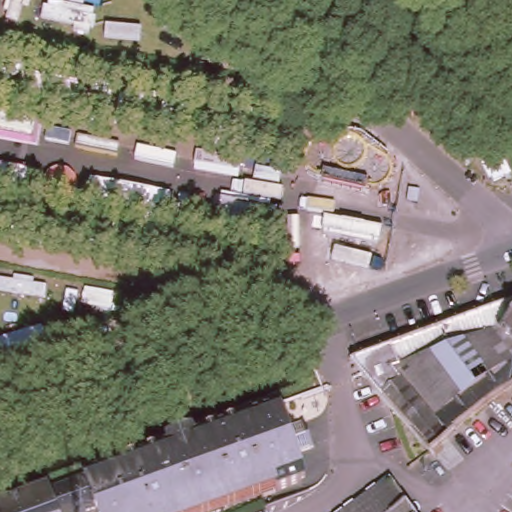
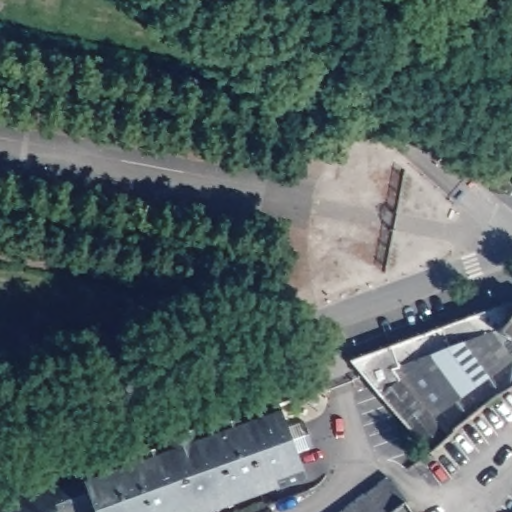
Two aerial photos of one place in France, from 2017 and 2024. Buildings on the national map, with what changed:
unchanged [(512,312),(497,329),(410,360),(415,372),(395,380),(445,435),(442,438),(438,441),(439,443),(425,451),(342,360),(512,298),(512,312)]
unchanged [(512,382),(495,393),(445,435),(395,380),(415,372),(410,360),(497,329),(512,312),(512,382)]
unchanged [(298,471),(300,474),(274,483),(273,481),(192,512),(101,512),(85,470),(86,470),(85,467),(113,457),(115,460),(165,440),(163,434),(190,424),(192,430),(243,411),(243,410),(271,399),(272,401),(276,400),(284,421),(302,415),(312,441),(293,448),(302,470),(298,471)]
unchanged [(47,482),(48,486),(82,473),(82,471),(85,470),(101,512),(97,512),(93,503),(69,512),(0,512),(0,499),(47,482)]
unchanged [(390,472),(392,475),(408,493),(402,498),(383,512),(336,512),(390,472)]
unchanged [(402,498),(413,512),(383,512),(402,498)]

